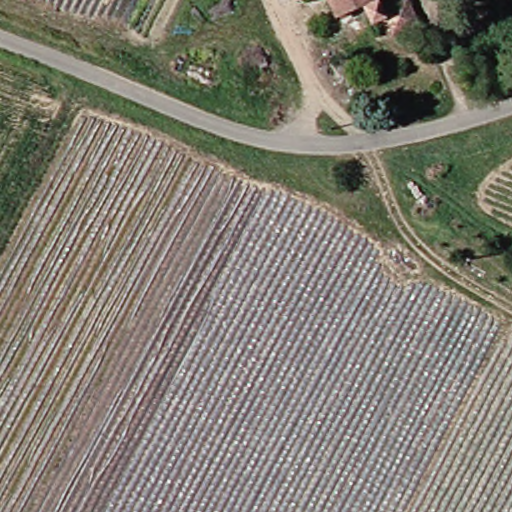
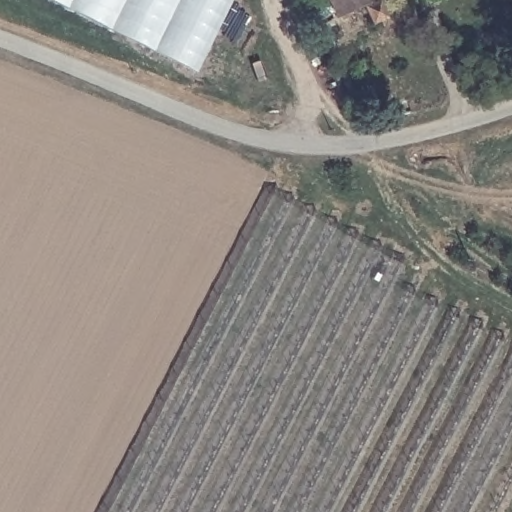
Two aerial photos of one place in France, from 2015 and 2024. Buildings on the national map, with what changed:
new [(195,71),(51,0),(231,0),(195,71)]
unchanged [(341,19),(333,0),(378,0),(380,5),(341,19)]
unchanged [(375,29),(368,14),(385,7),(390,19),(411,10),(420,32),(396,43),(393,35),(381,44),(375,29)]

